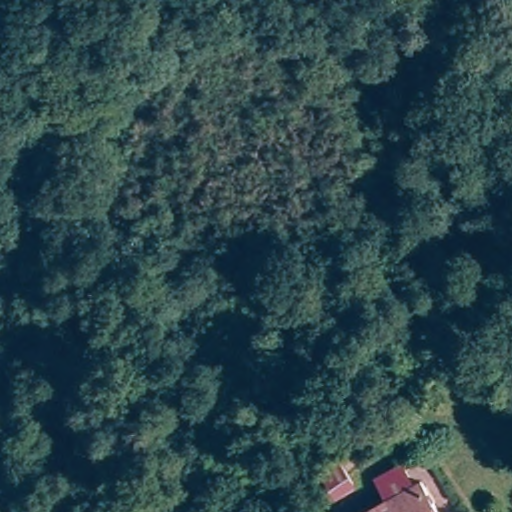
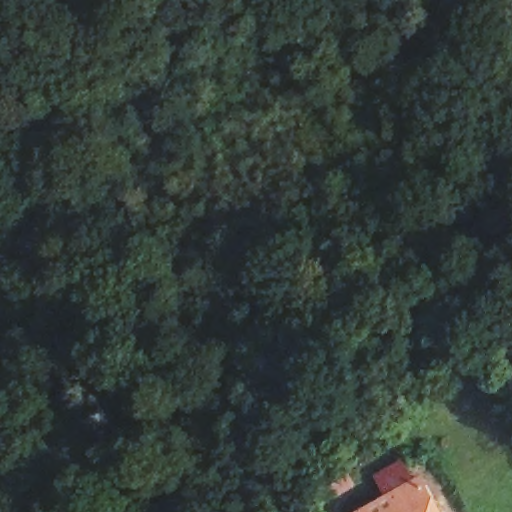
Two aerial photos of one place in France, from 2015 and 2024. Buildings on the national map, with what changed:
unchanged [(371,477),(404,459),(419,477),(441,512),(360,512),(387,498),(371,477)]
unchanged [(337,507),(325,489),(342,478),(354,494),(337,507)]

